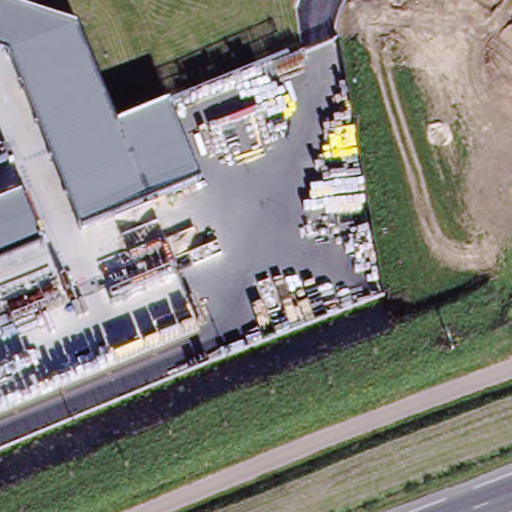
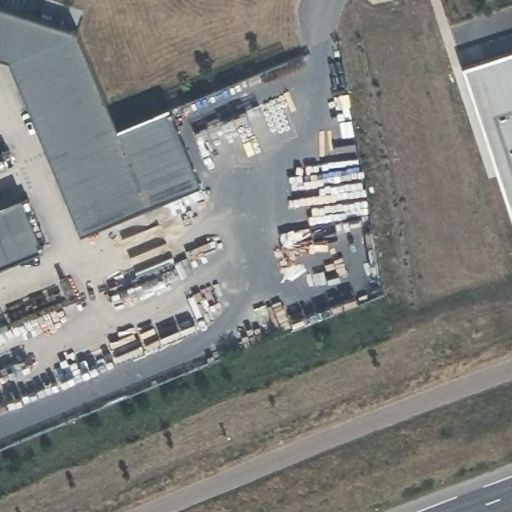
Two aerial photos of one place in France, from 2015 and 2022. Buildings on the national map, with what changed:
unchanged [(0,52),(0,4),(77,27),(116,126),(170,103),(199,182),(79,232),(8,55),(0,52)]
new [(466,67),(512,52),(512,210),(466,67)]
unchanged [(44,250),(0,266),(0,207),(23,198),(44,250)]

